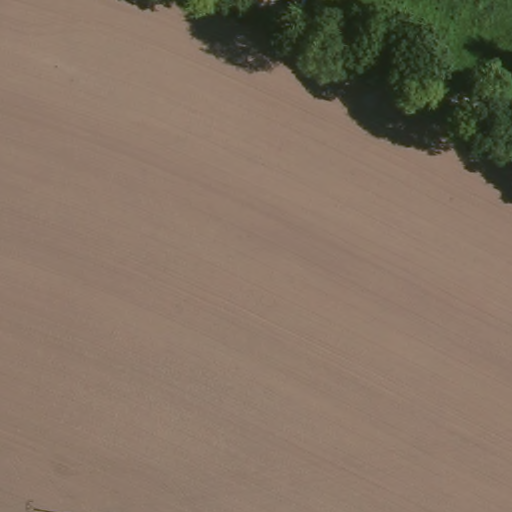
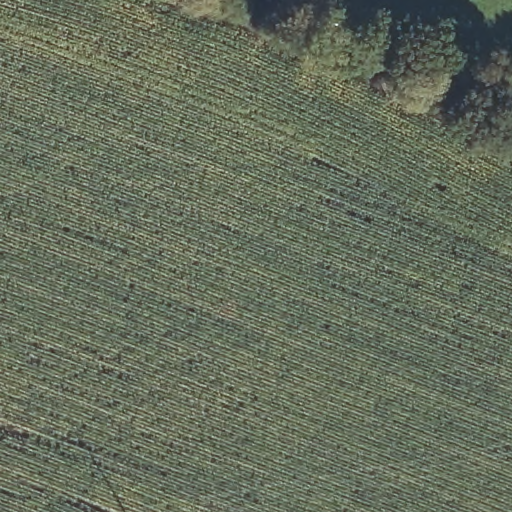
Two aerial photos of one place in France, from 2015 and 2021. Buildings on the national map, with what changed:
unchanged [(287,0),(293,0),(292,2),(287,0)]

